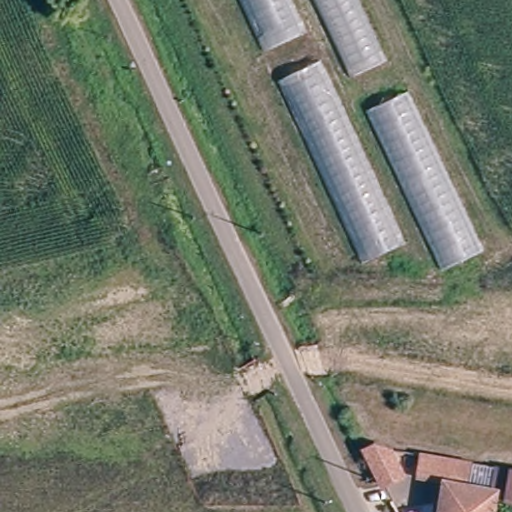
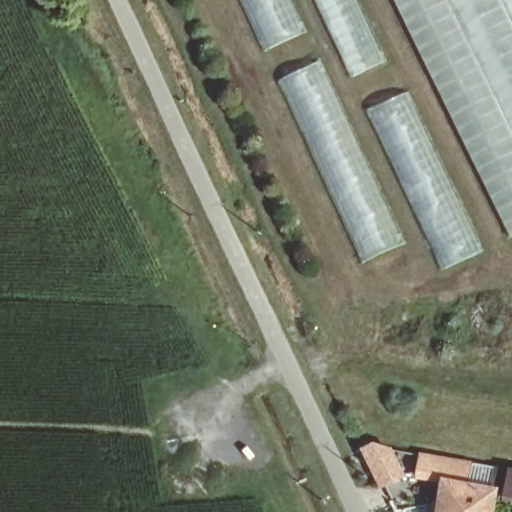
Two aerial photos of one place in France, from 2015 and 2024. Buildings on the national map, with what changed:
unchanged [(244,0),(288,0),(303,33),(268,49),(244,0)]
unchanged [(356,0),(385,63),(353,76),(318,0),(356,0)]
new [(510,237),(394,0),(512,0),(512,236),(510,237)]
unchanged [(280,80),(318,61),(403,244),(366,261),(280,80)]
unchanged [(369,111),(405,93),(482,252),(444,269),(369,111)]
unchanged [(370,446),(390,449),(402,476),(382,486),(364,449),(370,446)]
unchanged [(450,483),(424,478),(428,455),(478,464),(473,487),(500,491),(500,499),(497,512),(444,512),(450,483)]
unchanged [(511,502),(500,499),(500,491),(473,487),(478,464),(512,469),(512,500),(511,502)]

